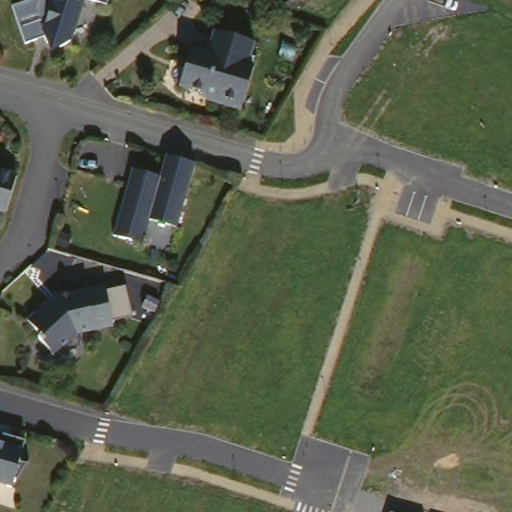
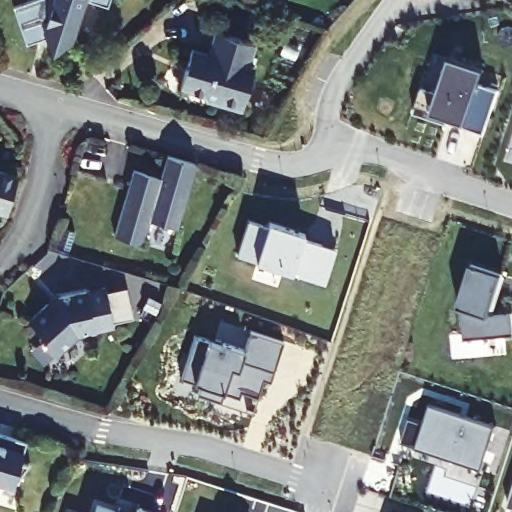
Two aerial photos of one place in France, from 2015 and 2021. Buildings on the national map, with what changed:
unchanged [(41,0),(117,0),(106,5),(102,17),(80,10),(66,52),(57,57),(44,53),(41,47),(22,54),(10,17),(39,7),(41,0)]
unchanged [(253,47),(247,69),(252,70),(240,114),(210,105),(207,100),(179,91),(190,52),(206,57),(212,35),(253,47)]
new [(463,126),(465,124),(450,120),(448,124),(414,112),(421,89),(438,94),(450,60),(483,70),(478,85),(498,91),(483,133),(463,126)]
unchanged [(162,155),(190,163),(174,226),(163,224),(162,226),(156,224),(156,222),(146,220),(140,243),(111,235),(130,170),(156,177),(162,155)]
unchanged [(16,185),(8,216),(0,214),(0,174),(17,179),(16,185)]
new [(249,221),(268,227),(270,223),(305,235),(303,239),(335,250),(325,285),(237,256),(249,221)]
unchanged [(100,287),(109,326),(74,335),(50,356),(35,338),(35,333),(24,321),(42,305),(44,307),(54,297),(100,287)]
new [(257,365),(253,375),(263,377),(256,396),(227,385),(220,403),(196,394),(200,384),(181,378),(195,336),(220,345),(221,341),(244,350),(250,330),(283,341),(273,370),(257,365)]
new [(427,402),(493,423),(480,465),(478,468),(412,446),(413,443),(427,402)]
unchanged [(20,460),(28,462),(26,465),(24,469),(21,474),(20,479),(18,478),(15,486),(0,482),(0,431),(26,439),(20,460)]
new [(126,512),(92,512),(95,501),(126,512)]
new [(157,511),(157,512),(133,512),(135,503),(157,511)]
new [(72,512),(68,512),(69,511),(72,512)]
unchanged [(392,512),(391,512),(391,511),(392,512)]

